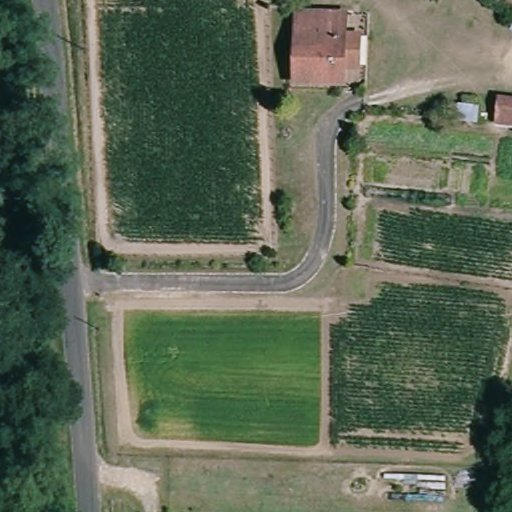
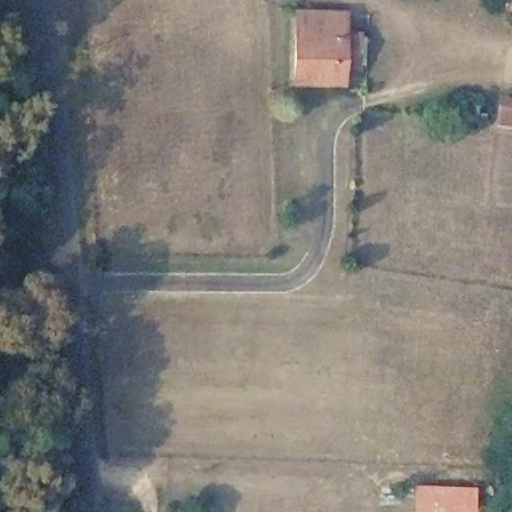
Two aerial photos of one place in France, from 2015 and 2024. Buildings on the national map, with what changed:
unchanged [(512,3),(504,0),(512,0),(512,3)]
unchanged [(357,62),(342,61),(341,77),(295,76),(298,7),(343,9),(342,29),(358,29),(357,62)]
unchanged [(500,98),(512,99),(512,125),(497,123),(500,98)]
new [(413,483),(474,484),(474,511),(414,510),(413,483)]

